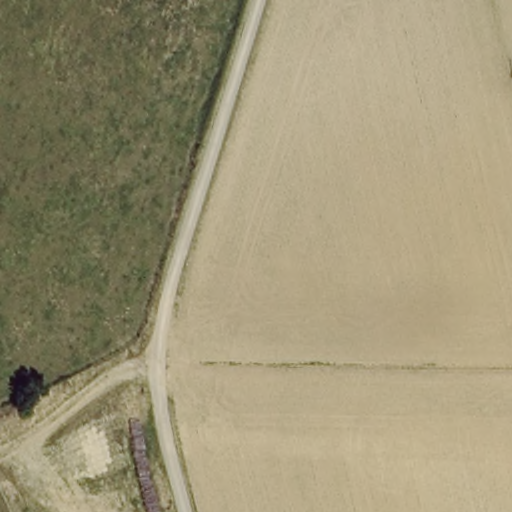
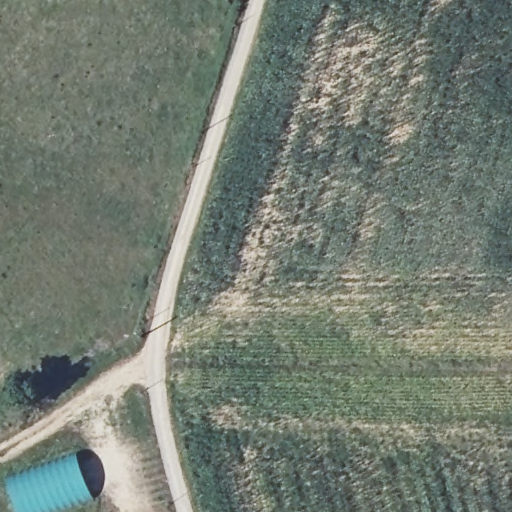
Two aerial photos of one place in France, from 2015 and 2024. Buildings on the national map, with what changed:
new [(63,512),(18,512),(8,476),(78,452),(96,500),(63,512)]

